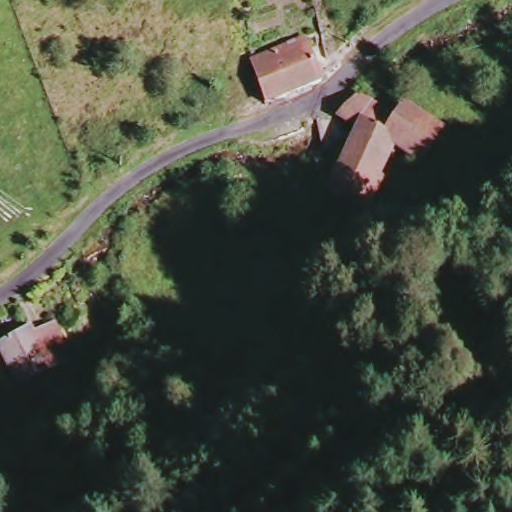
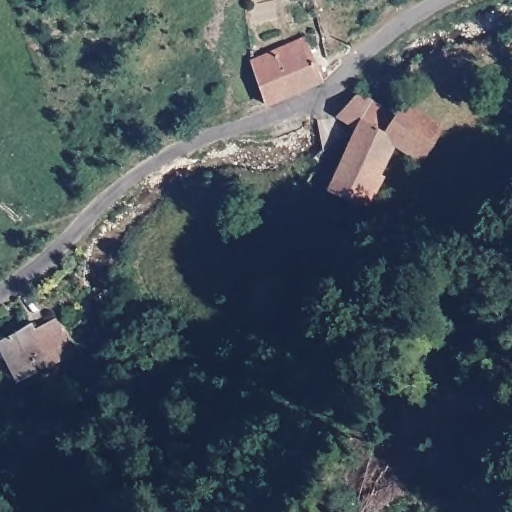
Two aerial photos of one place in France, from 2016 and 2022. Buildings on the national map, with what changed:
unchanged [(249,65),(307,37),(322,73),(268,98),(249,65)]
unchanged [(321,165),(341,173),(361,126),(342,114),(350,107),(362,95),(381,105),(399,115),(406,101),(445,124),(425,157),(396,143),(377,191),(375,198),(371,205),(333,191),(330,193),(311,184),(321,165)]
unchanged [(18,379),(0,343),(0,338),(30,322),(35,327),(55,316),(72,352),(18,379)]

